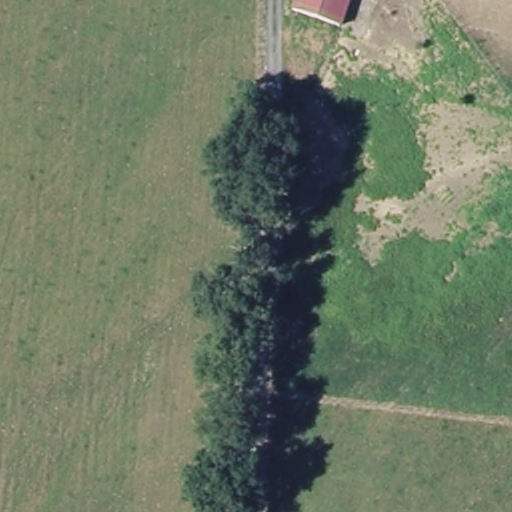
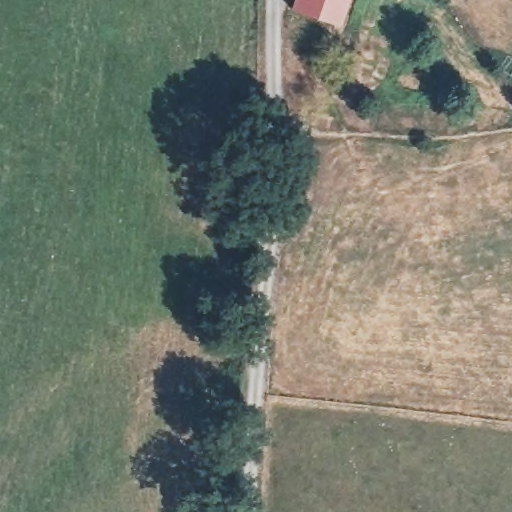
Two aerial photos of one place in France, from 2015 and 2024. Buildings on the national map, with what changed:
unchanged [(342,26),(294,10),(297,0),(350,0),(342,26)]

